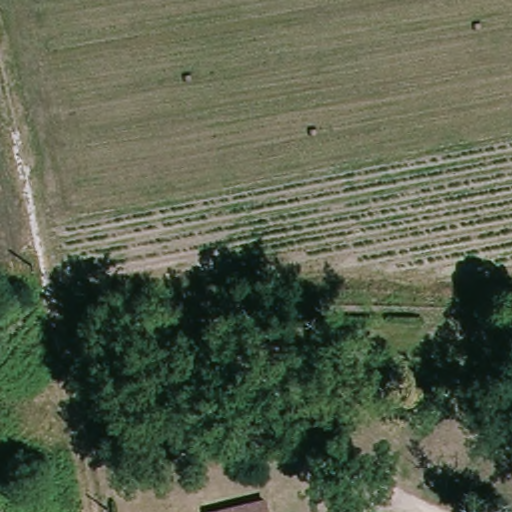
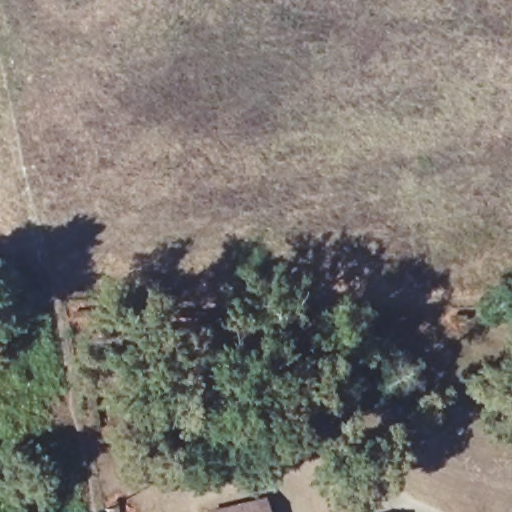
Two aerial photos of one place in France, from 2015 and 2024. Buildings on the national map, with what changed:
unchanged [(292,512),(250,512),(291,504),(292,512)]

